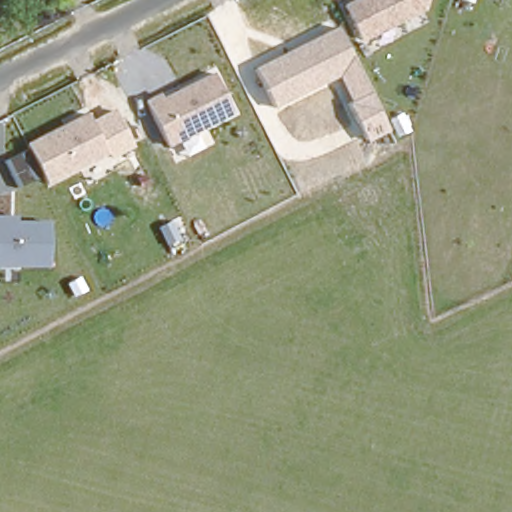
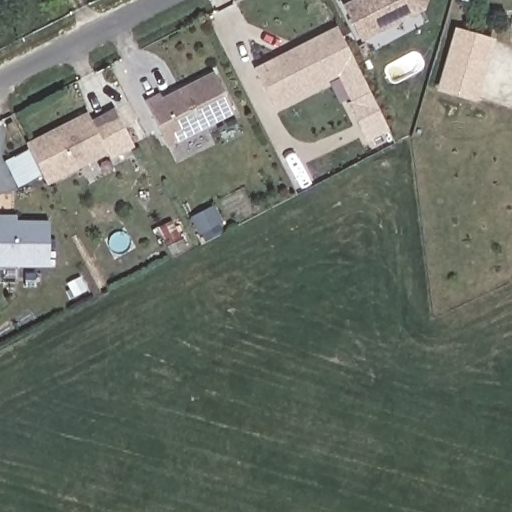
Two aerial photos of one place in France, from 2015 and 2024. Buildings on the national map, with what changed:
unchanged [(359,44),(341,3),(348,0),(428,0),(424,11),(359,44)]
unchanged [(335,26),(357,69),(337,79),(274,110),(252,68),(335,26)]
new [(454,28),(495,39),(477,101),(437,90),(454,28)]
unchanged [(357,69),(390,131),(368,143),(337,79),(357,69)]
unchanged [(168,149),(143,100),(160,92),(164,98),(213,74),(234,114),(168,149)]
unchanged [(115,110),(134,149),(112,159),(109,155),(91,121),(115,110)]
unchanged [(49,185),(25,142),(85,112),(109,155),(49,185)]
unchanged [(0,214),(15,214),(15,222),(51,222),(51,268),(0,269),(0,214)]

